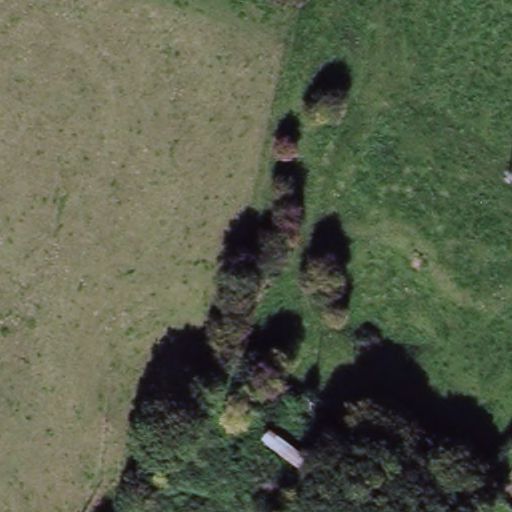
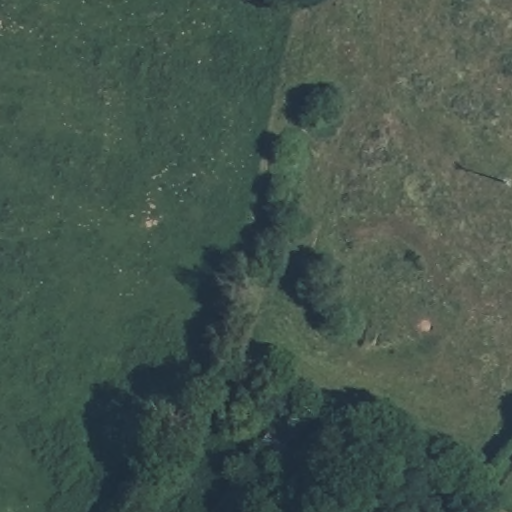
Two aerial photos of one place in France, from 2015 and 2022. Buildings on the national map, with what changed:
unchanged [(304,461),(293,475),(257,446),(267,431),(304,461)]

